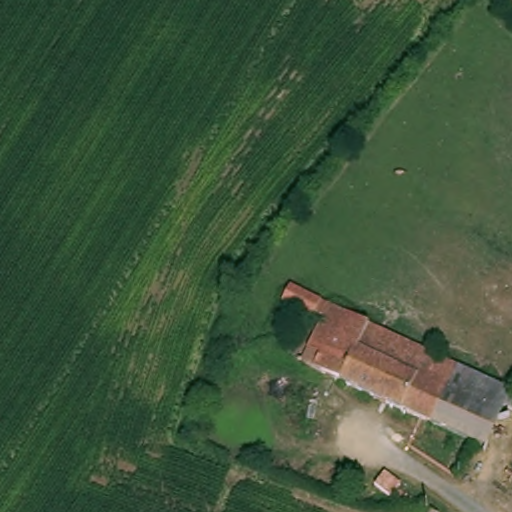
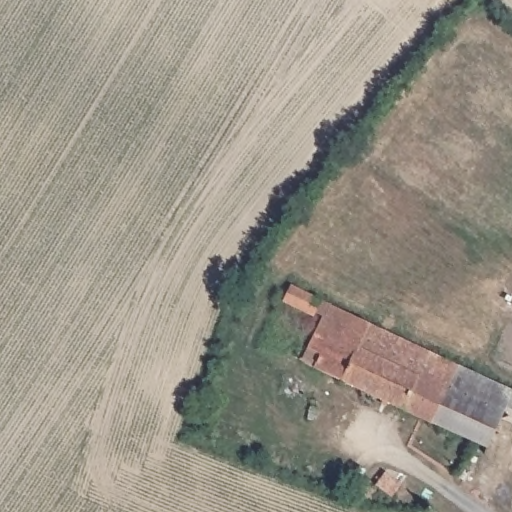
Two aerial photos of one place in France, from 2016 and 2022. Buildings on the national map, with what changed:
unchanged [(512,395),(512,413),(499,407),(480,448),(295,362),(317,318),(309,314),(308,317),(277,302),(284,286),(363,325),(501,390),(512,395)]

